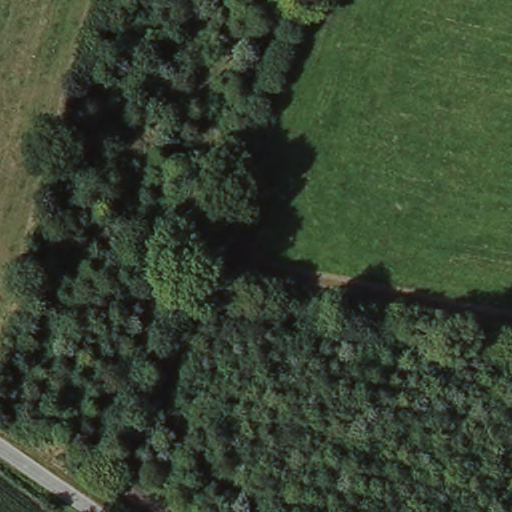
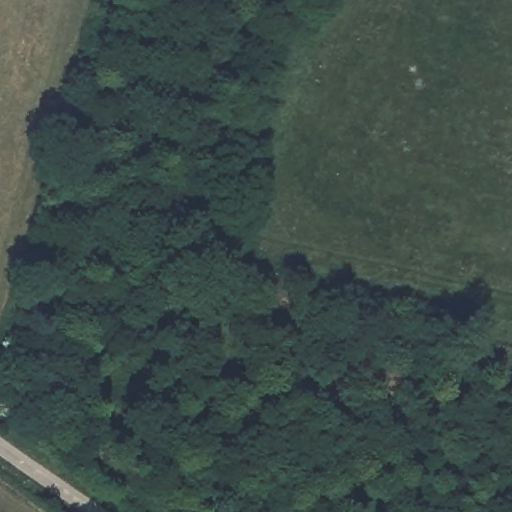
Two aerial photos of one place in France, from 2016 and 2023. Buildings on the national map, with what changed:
[]

